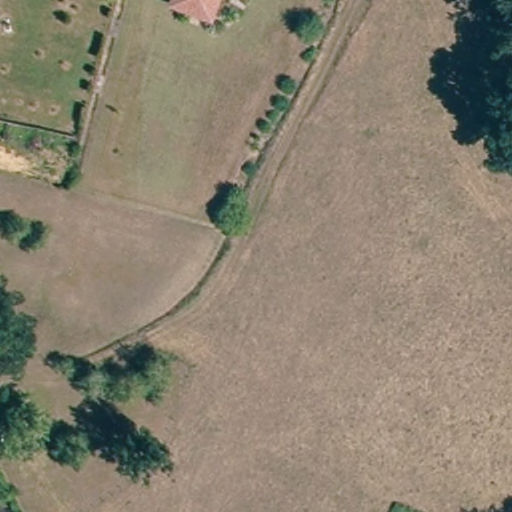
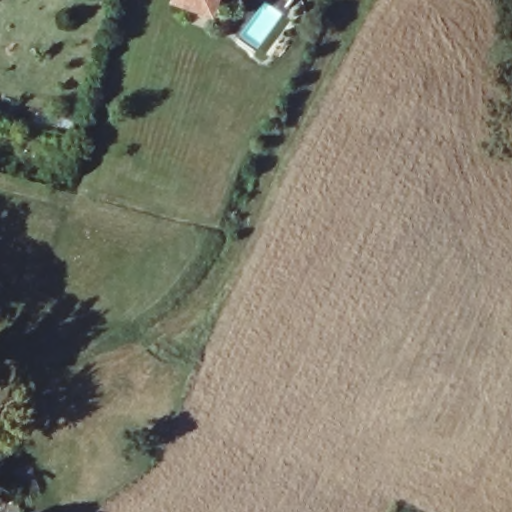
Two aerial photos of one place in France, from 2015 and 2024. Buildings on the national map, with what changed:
unchanged [(207,13),(173,0),(211,0),(207,13)]

